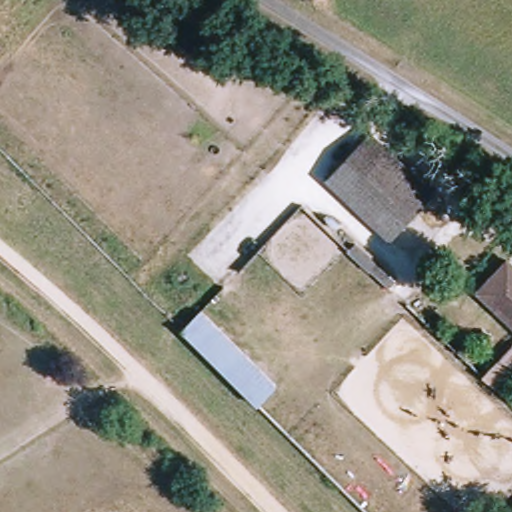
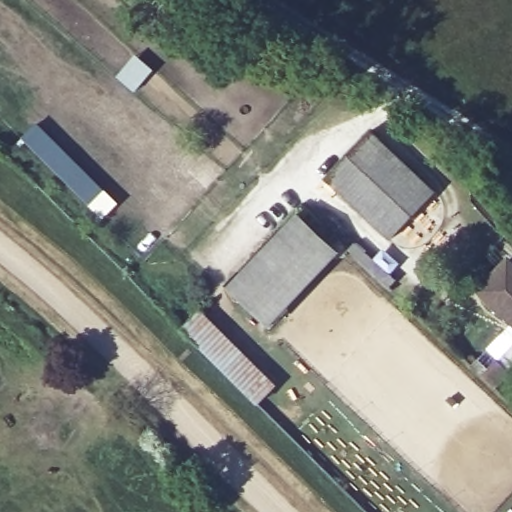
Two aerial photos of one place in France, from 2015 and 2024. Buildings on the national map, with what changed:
new [(22,138),(38,122),(119,203),(103,219),(22,138)]
unchanged [(391,241),(323,182),(366,132),(434,190),(391,241)]
new [(269,327),(228,288),(297,213),(340,253),(269,327)]
unchanged [(505,259),(512,265),(512,329),(472,293),(505,259)]
unchanged [(253,405),(177,332),(197,307),(273,385),(253,405)]
unchanged [(495,385),(486,377),(479,371),(494,356),(499,360),(509,368),(495,385)]

